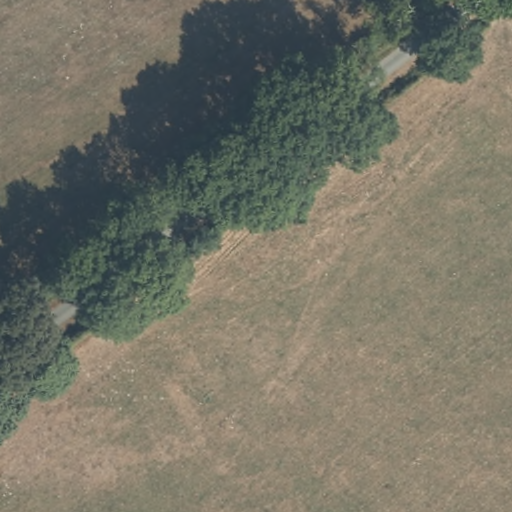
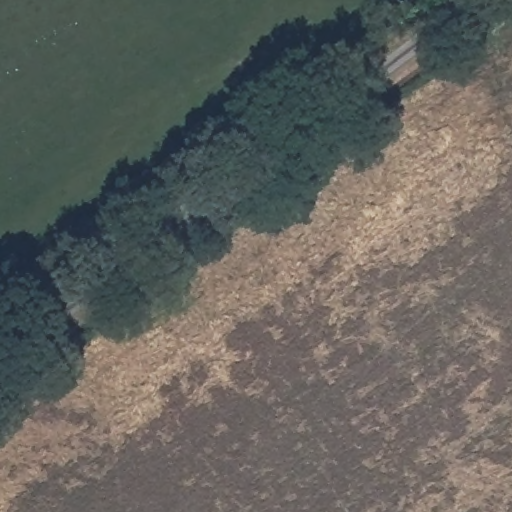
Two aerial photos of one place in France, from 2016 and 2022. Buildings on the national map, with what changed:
[]

